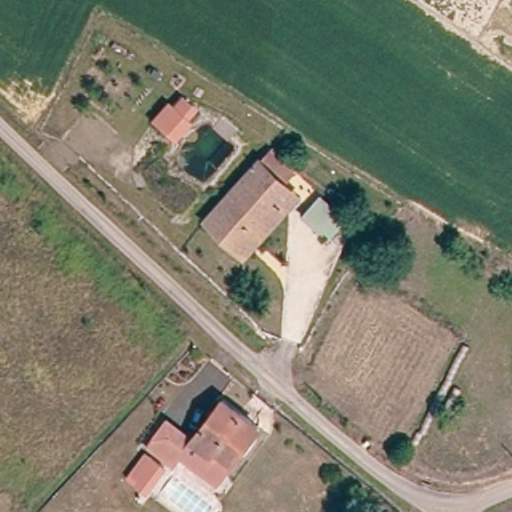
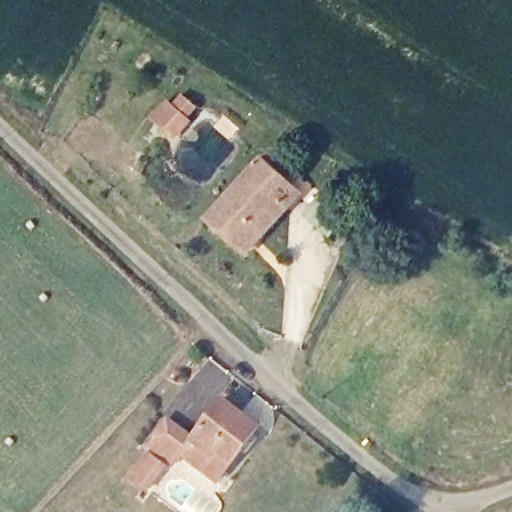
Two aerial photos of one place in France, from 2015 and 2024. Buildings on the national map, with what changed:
unchanged [(218,221),(264,157),(294,180),(303,188),(292,204),(255,254),(218,221)]
unchanged [(221,405),(254,431),(213,486),(179,459),(172,467),(146,448),(165,424),(189,442),(221,405)]
unchanged [(139,464),(153,473),(132,497),(119,487),(139,464)]

